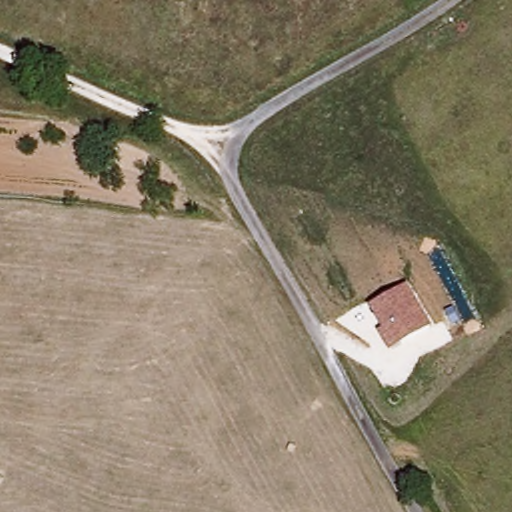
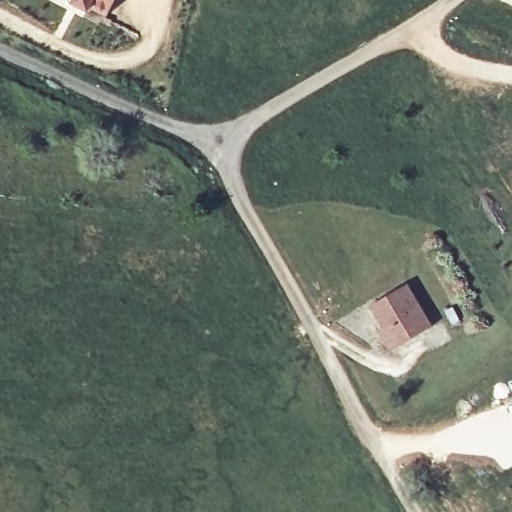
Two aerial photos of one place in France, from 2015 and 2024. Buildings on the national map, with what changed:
new [(67,3),(67,1),(66,0),(115,0),(105,19),(67,3)]
unchanged [(432,325),(389,352),(377,333),(382,330),(370,309),(407,286),(432,325)]

